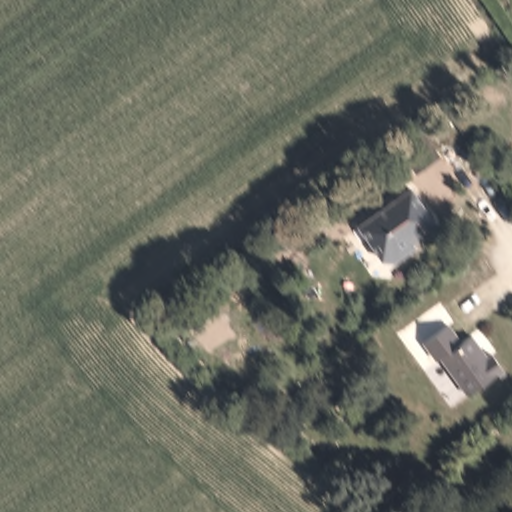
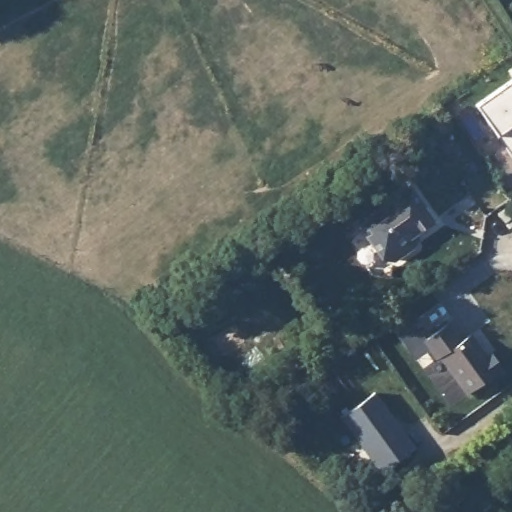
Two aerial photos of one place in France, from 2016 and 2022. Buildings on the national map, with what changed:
new [(512,158),(476,106),(512,82),(512,158)]
unchanged [(362,219),(414,183),(438,214),(410,233),(416,241),(414,243),(399,254),(385,254),(362,219)]
unchanged [(445,352),(440,355),(428,336),(450,321),(463,337),(473,330),(490,352),(494,348),(506,364),(472,389),(445,352)]
new [(375,393),(415,446),(378,472),(341,419),(375,393)]

